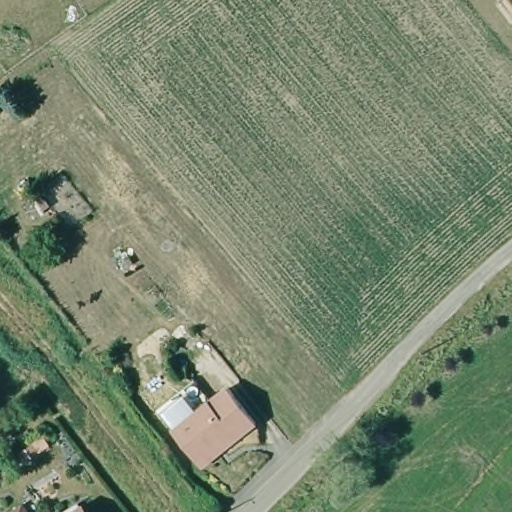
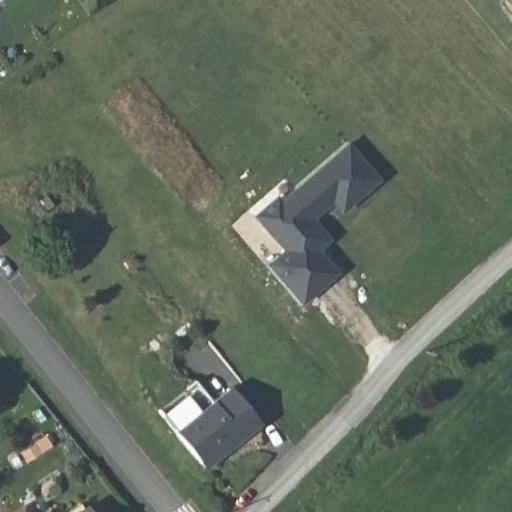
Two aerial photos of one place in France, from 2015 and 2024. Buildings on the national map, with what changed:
new [(274,197),(301,182),(349,142),(383,181),(340,216),(332,207),(316,221),(333,240),(321,251),(339,273),(300,306),(265,265),(280,250),(251,215),(274,197)]
unchanged [(199,462),(176,434),(171,428),(206,397),(211,403),(228,388),(256,422),(223,450),(203,467),(199,462)]

